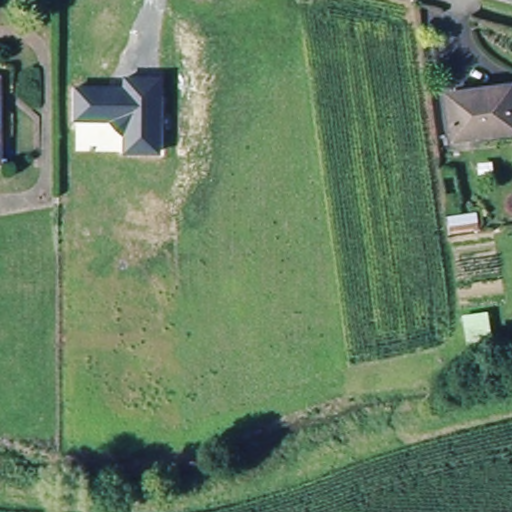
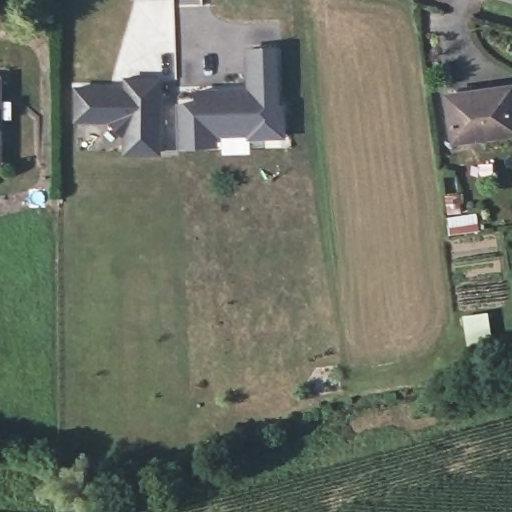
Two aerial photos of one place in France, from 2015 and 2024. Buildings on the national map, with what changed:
new [(178,101),(196,99),(196,90),(246,87),(244,48),(279,47),(281,105),(285,104),(287,138),(248,138),(248,135),(217,137),(218,146),(179,147),(178,101)]
unchanged [(124,85),(125,75),(163,74),(161,154),(126,153),(126,136),(110,121),(74,121),(75,83),(124,85)]
unchanged [(0,76),(4,76),(4,176),(0,176),(0,76)]
unchanged [(459,136),(452,90),(497,83),(512,82),(512,130),(459,136)]

